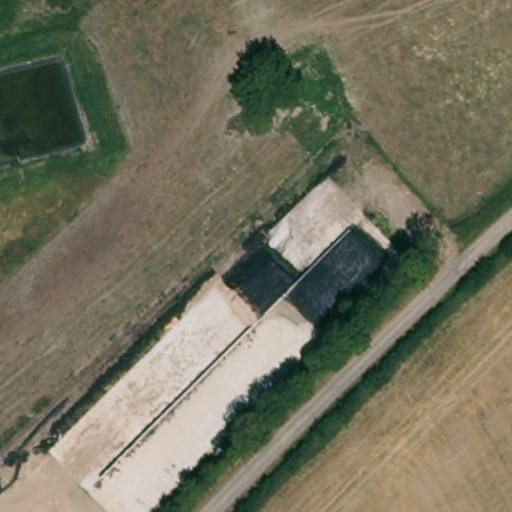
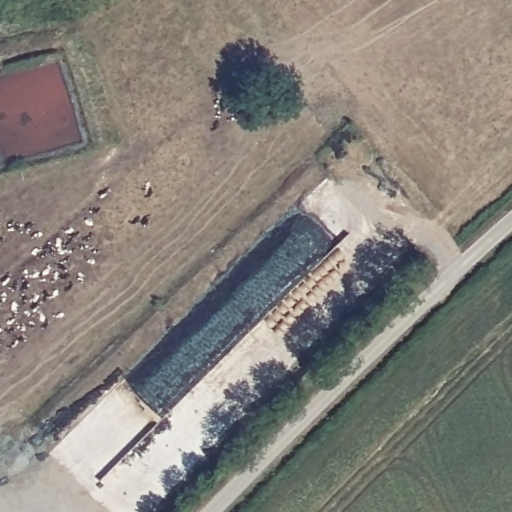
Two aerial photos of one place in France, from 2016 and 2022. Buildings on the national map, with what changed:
[]

